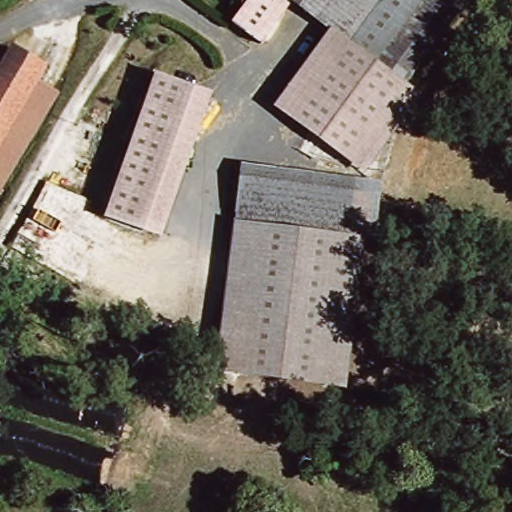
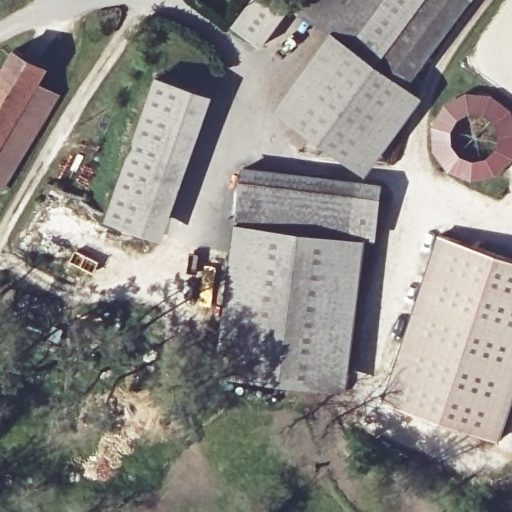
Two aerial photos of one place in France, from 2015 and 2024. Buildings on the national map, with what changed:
new [(278,0),(289,7),(262,45),(234,25),(252,0),(278,0)]
unchanged [(354,160),(293,119),(345,44),(331,35),(278,0),(463,0),(404,85),(354,160)]
unchanged [(331,35),(345,44),(293,119),(278,110),(331,35)]
unchanged [(0,132),(0,66),(7,54),(36,72),(0,132)]
unchanged [(64,89),(0,194),(0,132),(36,72),(64,89)]
unchanged [(159,74),(215,95),(164,239),(106,220),(159,74)]
unchanged [(404,85),(418,95),(366,169),(354,160),(404,85)]
new [(512,112),(512,163),(496,176),(472,181),(449,172),(432,151),(431,125),(446,102),(467,93),(493,95),(512,112)]
unchanged [(218,370),(241,176),(351,190),(346,231),(327,383),(218,370)]
unchanged [(379,194),(374,234),(362,234),(346,231),(351,190),(379,194)]
unchanged [(362,234),(344,385),(327,383),(346,231),(362,234)]
new [(512,409),(501,442),(382,405),(438,233),(512,257),(512,409)]

